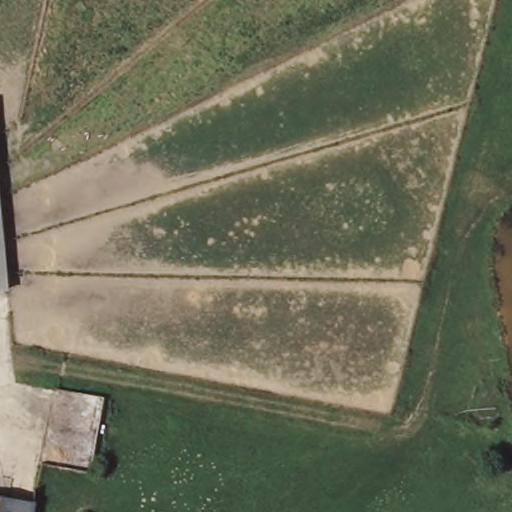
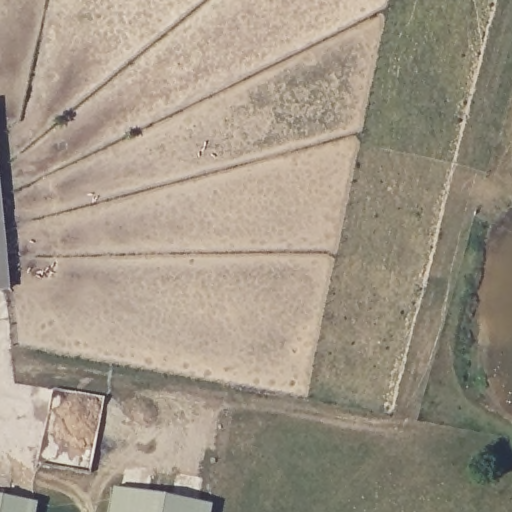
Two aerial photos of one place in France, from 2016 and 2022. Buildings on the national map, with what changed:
unchanged [(5,286),(0,287),(0,234),(5,286)]
new [(115,488),(211,505),(210,512),(111,512),(115,488)]
unchanged [(32,497),(29,512),(0,512),(0,492),(32,497)]

